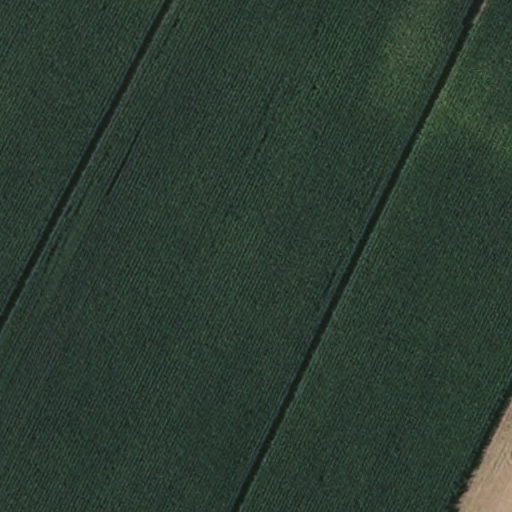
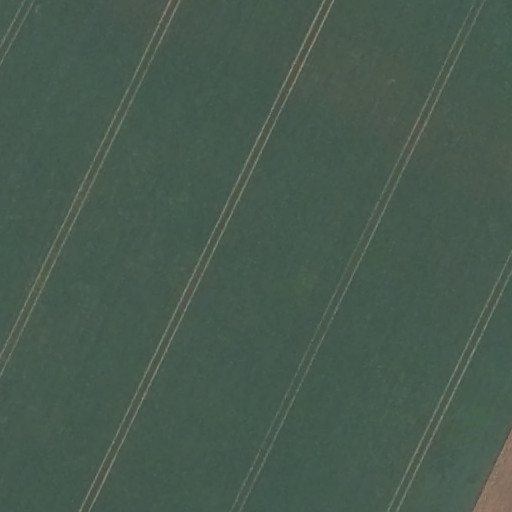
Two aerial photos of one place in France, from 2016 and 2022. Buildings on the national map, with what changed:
[]

